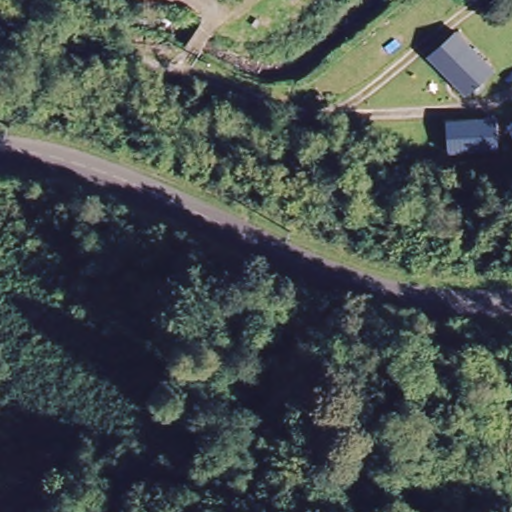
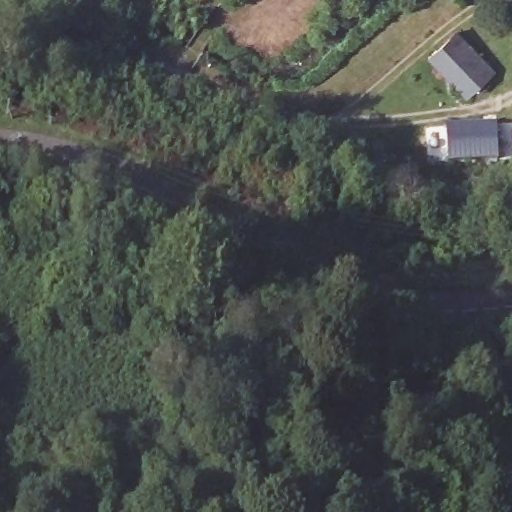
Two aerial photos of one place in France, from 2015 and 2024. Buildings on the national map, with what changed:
unchanged [(465,99),(433,57),(461,32),(495,75),(465,99)]
unchanged [(454,161),(449,124),(497,119),(501,153),(454,161)]

